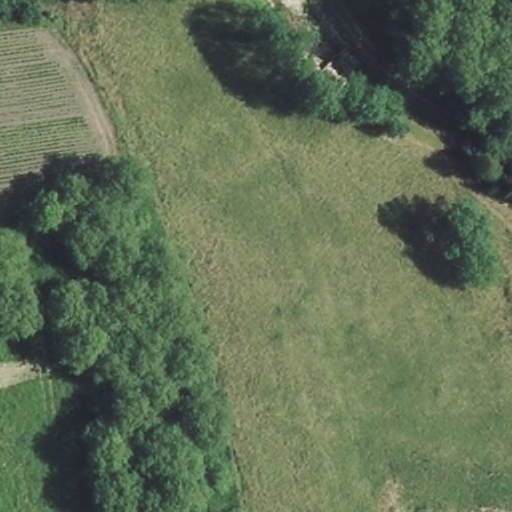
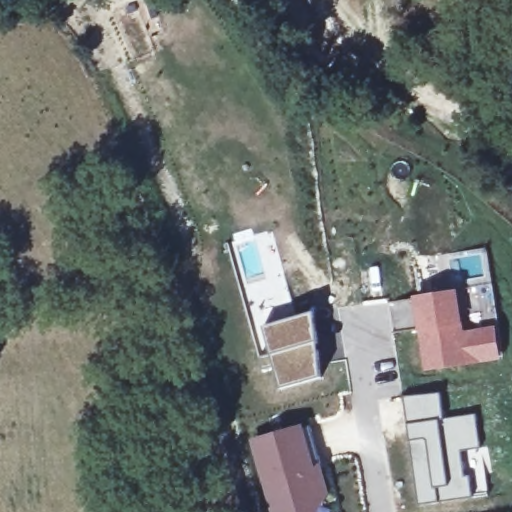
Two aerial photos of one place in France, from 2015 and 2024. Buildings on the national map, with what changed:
new [(457,293),(461,333),(493,330),(497,360),(424,368),(417,297),(457,293)]
new [(269,353),(261,327),(313,312),(323,380),(279,390),(273,370),(261,372),(258,356),(269,353)]
new [(440,392),(442,417),(474,414),(479,449),(458,451),(461,476),(466,476),(468,497),(414,503),(403,394),(440,392)]
new [(313,497),(305,512),(268,512),(251,442),(306,428),(316,467),(321,486),(313,497)]

